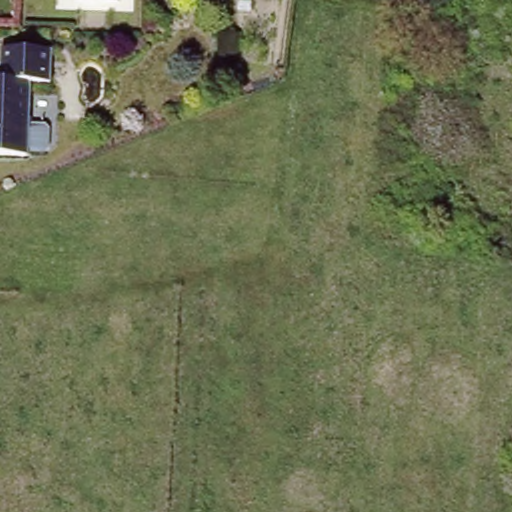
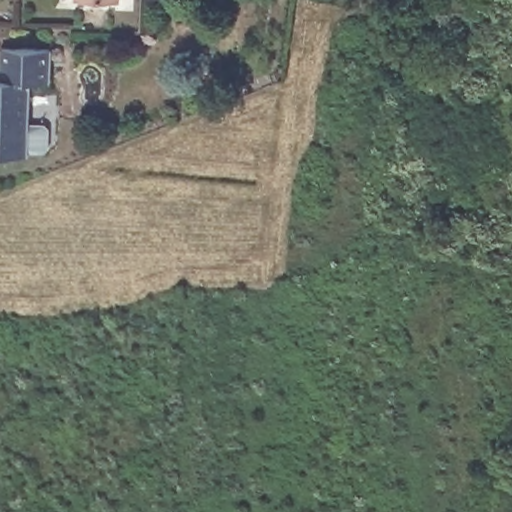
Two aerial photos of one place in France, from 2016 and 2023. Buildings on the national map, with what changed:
unchanged [(42,128),(45,132),(44,149),(39,152),(24,151),(24,153),(0,153),(0,43),(49,44),(48,80),(26,79),(25,127),(42,128)]

